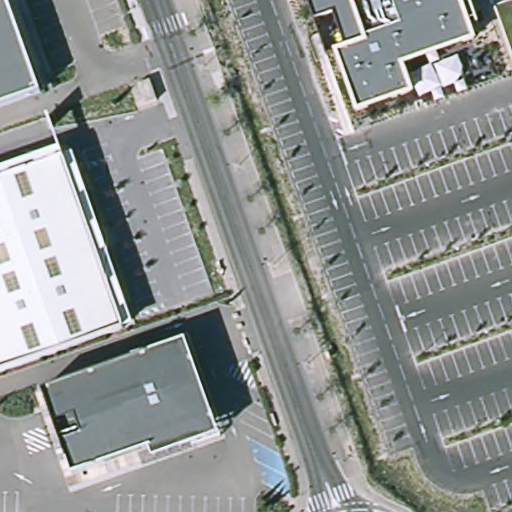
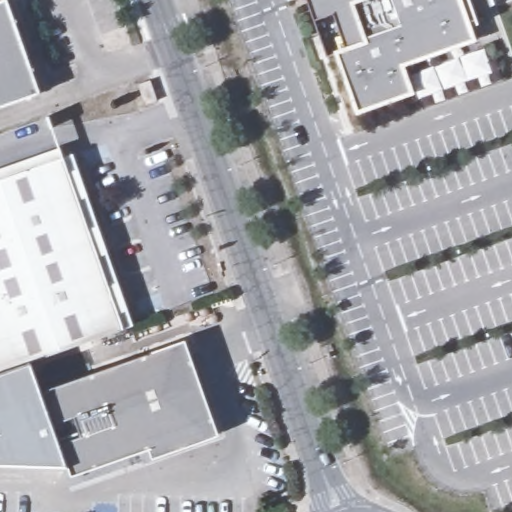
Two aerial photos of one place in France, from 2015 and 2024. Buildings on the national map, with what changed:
unchanged [(0,108),(0,0),(1,0),(7,0),(41,94),(0,108)]
unchanged [(477,41),(406,67),(415,95),(357,114),(334,50),(344,46),(333,12),(313,19),(307,0),(463,0),(477,41)]
unchanged [(150,81),(158,101),(146,106),(139,85),(150,81)]
unchanged [(63,153),(73,150),(134,322),(133,322),(124,325),(63,153)]
unchanged [(63,153),(124,325),(5,367),(0,369),(0,175),(63,153)]
unchanged [(185,342),(219,436),(153,459),(150,450),(206,430),(176,345),(185,342)]
unchanged [(176,345),(206,430),(150,450),(72,477),(42,392),(176,345)]
new [(68,466),(0,464),(0,369),(5,367),(30,358),(42,392),(68,466)]

